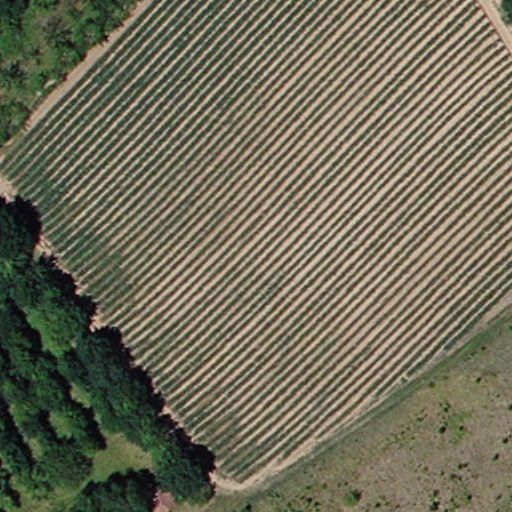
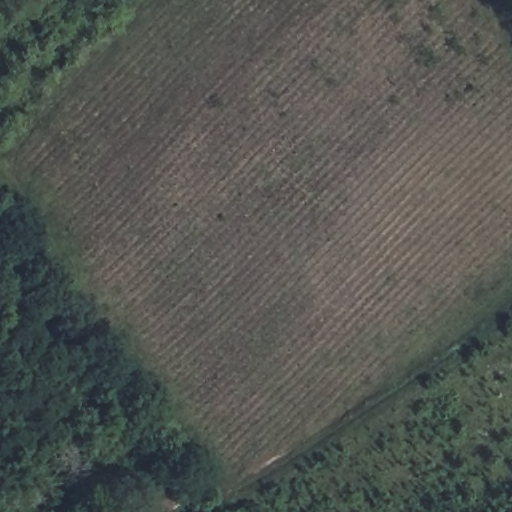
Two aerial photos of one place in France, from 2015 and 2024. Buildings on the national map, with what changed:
unchanged [(152,512),(145,499),(166,486),(179,506),(170,512),(152,512)]

